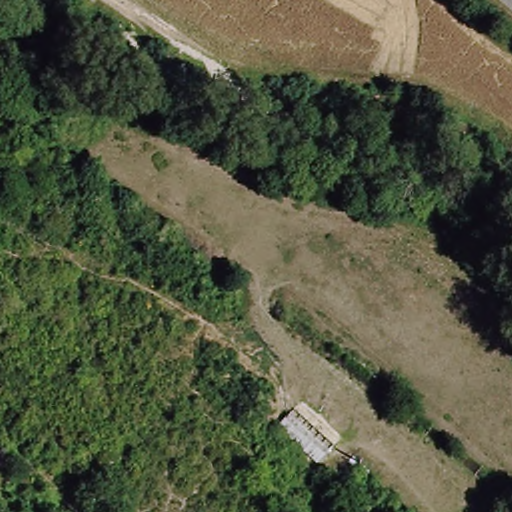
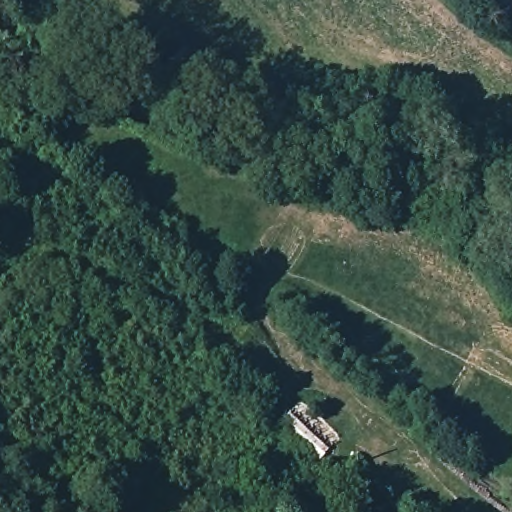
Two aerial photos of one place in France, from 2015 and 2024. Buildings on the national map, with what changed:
unchanged [(292,412),(337,448),(322,465),(280,428),(292,412)]

